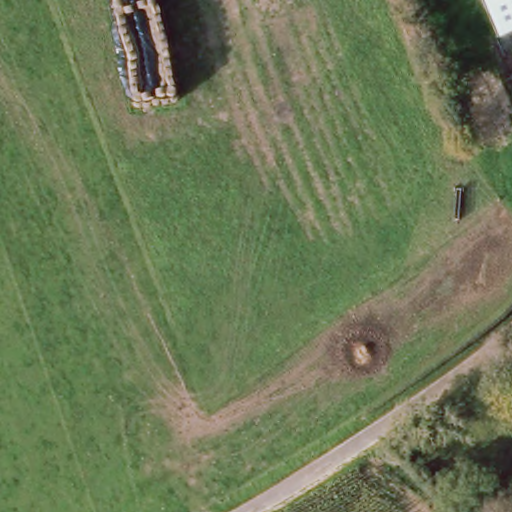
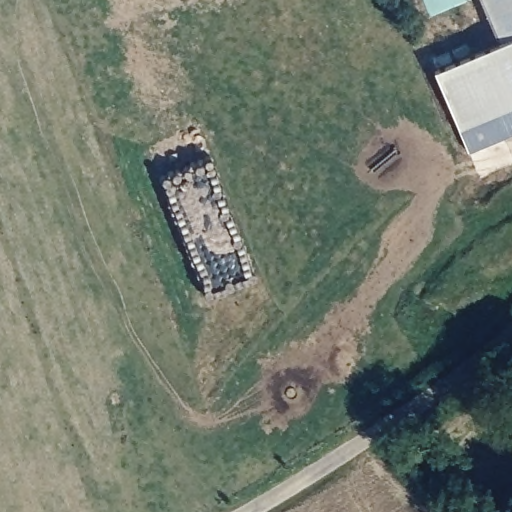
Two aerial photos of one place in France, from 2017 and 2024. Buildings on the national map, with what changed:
unchanged [(512,39),(501,44),(482,0),(512,0),(512,39)]
new [(437,70),(501,44),(512,39),(512,135),(471,152),(437,70)]

